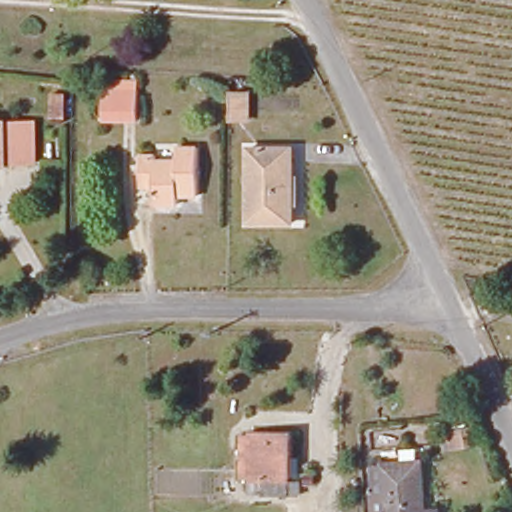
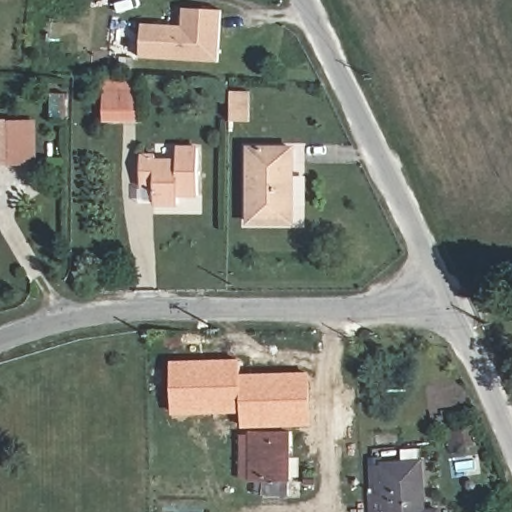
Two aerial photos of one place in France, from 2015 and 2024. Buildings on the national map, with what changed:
new [(140,59),(141,25),(182,27),(183,9),(221,11),(219,64),(140,59)]
unchanged [(62,113),(49,113),(49,88),(62,89),(62,113)]
unchanged [(133,88),(134,119),(99,119),(99,89),(133,88)]
unchanged [(246,117),(229,117),(229,92),(247,92),(246,117)]
unchanged [(31,162),(5,163),(5,165),(0,165),(0,123),(31,122),(31,162)]
unchanged [(290,148),(290,221),(245,222),(245,149),(290,148)]
unchanged [(194,150),(195,199),(175,200),(175,208),(150,209),(150,190),(136,190),(136,160),(150,159),(150,164),(172,163),(172,149),(194,150)]
new [(240,414),(172,415),(170,361),(240,358),(241,374),(309,371),(311,425),(242,428),(240,414)]
unchanged [(444,433),(468,428),(472,446),(447,451),(444,433)]
unchanged [(293,474),(246,476),(245,430),(293,429),(293,474)]
unchanged [(301,490),(258,490),(257,480),(302,479),(301,490)]

